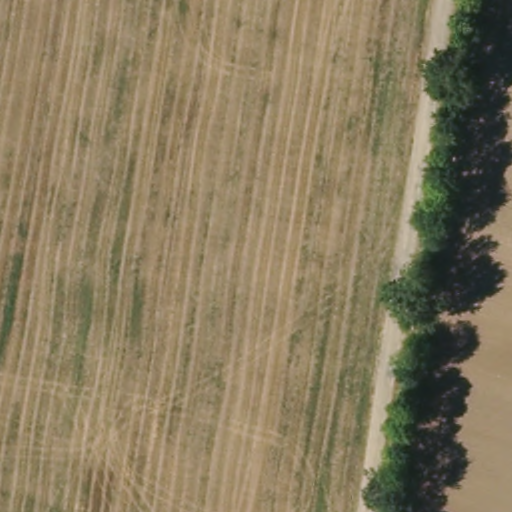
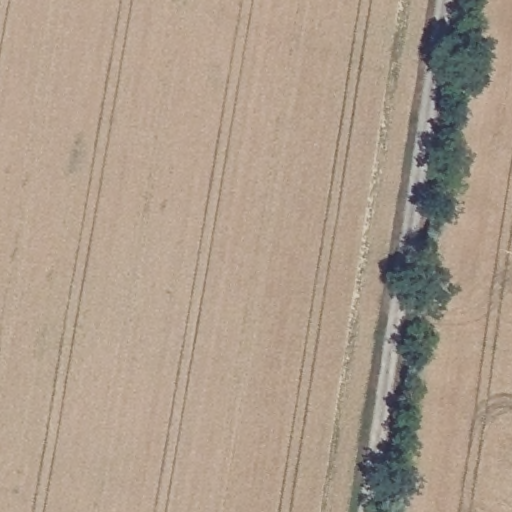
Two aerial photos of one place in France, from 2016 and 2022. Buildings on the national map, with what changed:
[]

